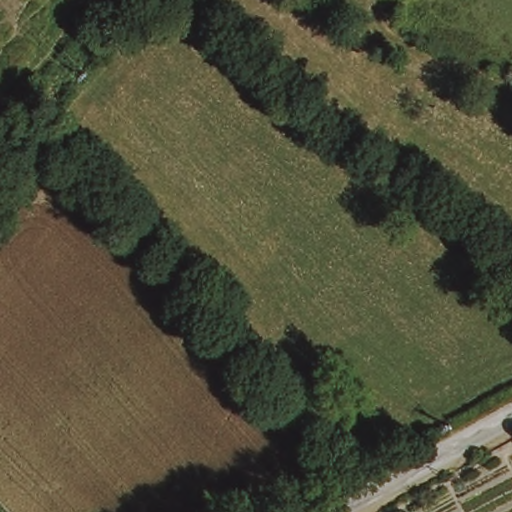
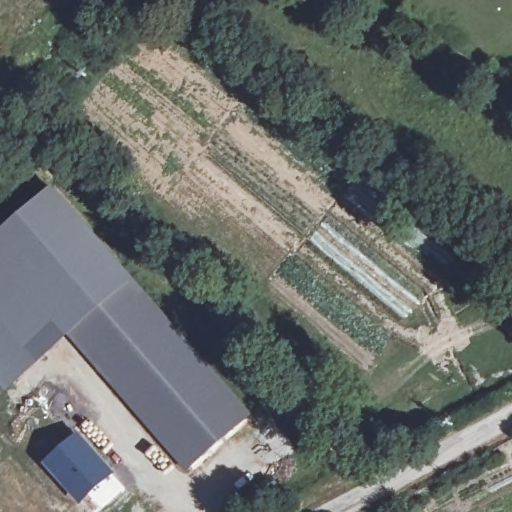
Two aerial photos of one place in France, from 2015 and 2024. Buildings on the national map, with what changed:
new [(0,232),(53,186),(133,280),(251,416),(186,471),(66,336),(52,322),(25,346),(0,318),(0,232)]
new [(89,512),(80,503),(43,463),(79,431),(114,473),(125,488),(98,512),(89,512)]

